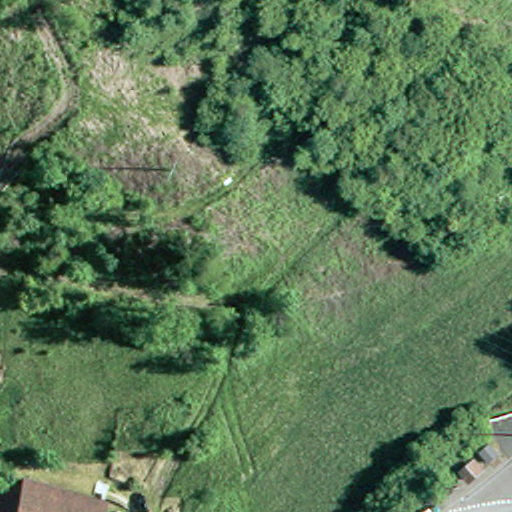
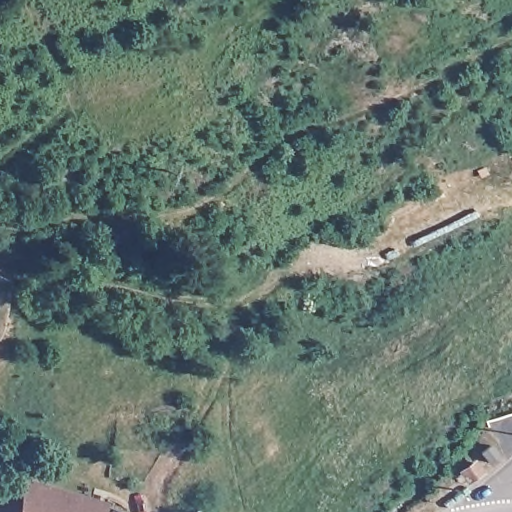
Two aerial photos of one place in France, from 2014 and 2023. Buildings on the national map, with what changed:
unchanged [(70,502),(97,510),(97,512),(0,512),(0,493),(22,488),(70,502)]

